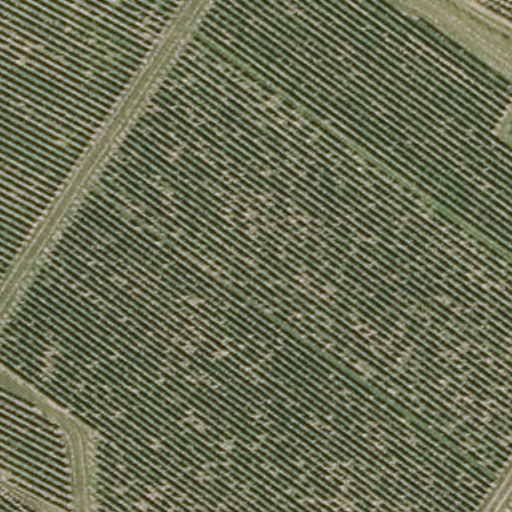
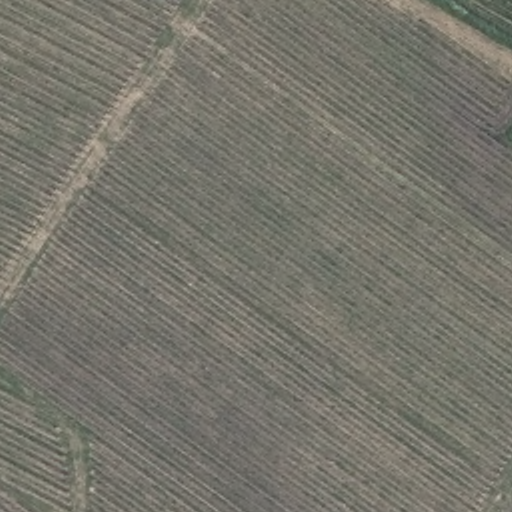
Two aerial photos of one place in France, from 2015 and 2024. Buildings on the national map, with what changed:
[]

